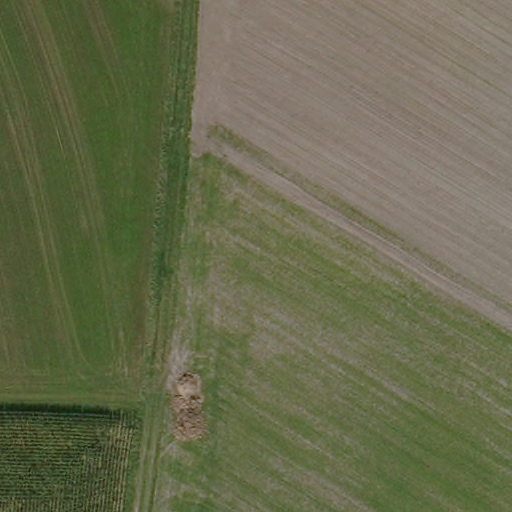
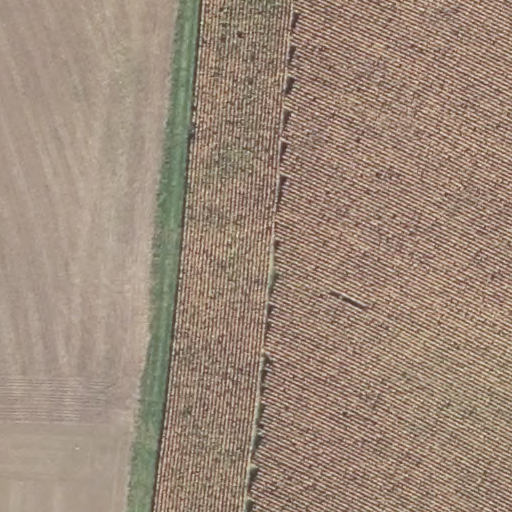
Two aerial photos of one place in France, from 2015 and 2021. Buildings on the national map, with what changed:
[]

